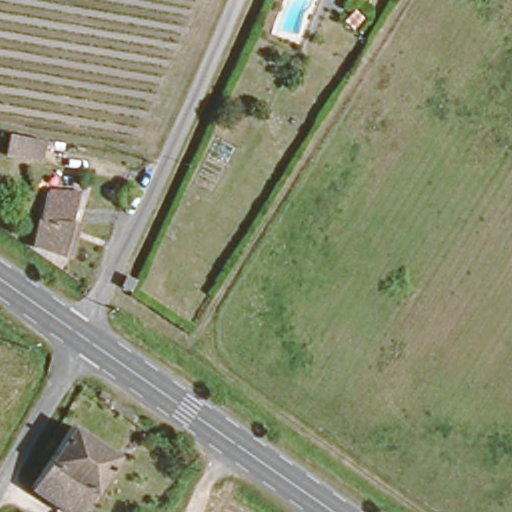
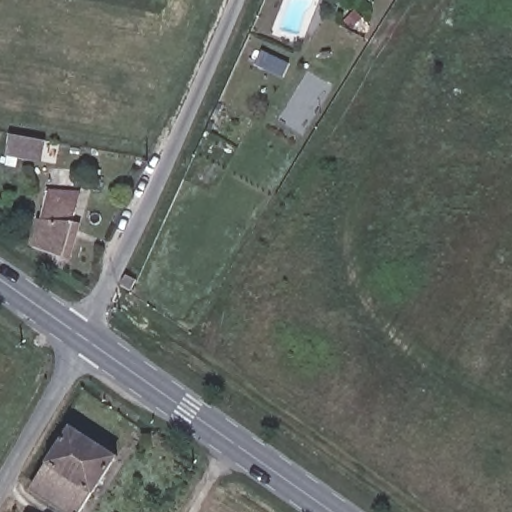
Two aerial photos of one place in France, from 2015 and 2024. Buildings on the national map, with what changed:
unchanged [(39,162),(4,156),(8,136),(43,142),(39,162)]
unchanged [(72,243),(62,240),(61,242),(29,235),(40,190),(72,198),(69,208),(80,210),(72,243)]
unchanged [(113,455),(79,512),(68,512),(28,488),(65,426),(113,455)]

